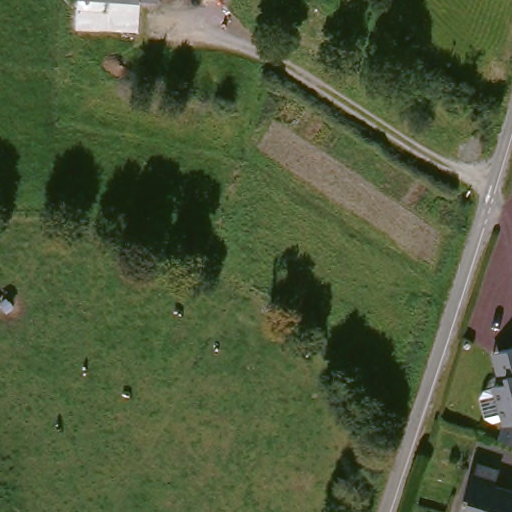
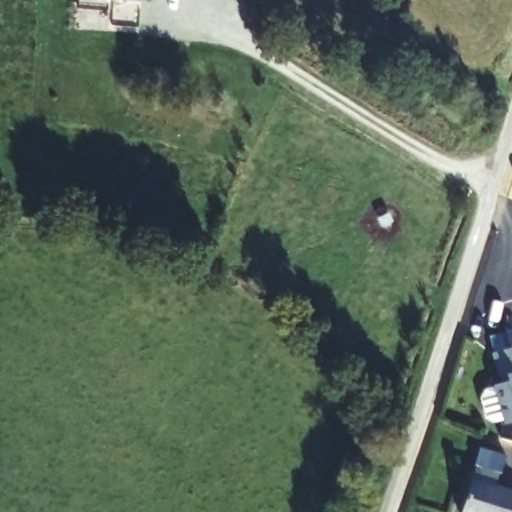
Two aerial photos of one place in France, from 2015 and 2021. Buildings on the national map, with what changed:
unchanged [(476,393),(482,386),(493,385),(495,385),(491,351),(512,349),(512,418),(497,420),(497,417),(485,418),(478,413),(476,393)]
unchanged [(479,460),(503,469),(497,484),(512,490),(512,512),(464,512),(461,511),(479,460)]

